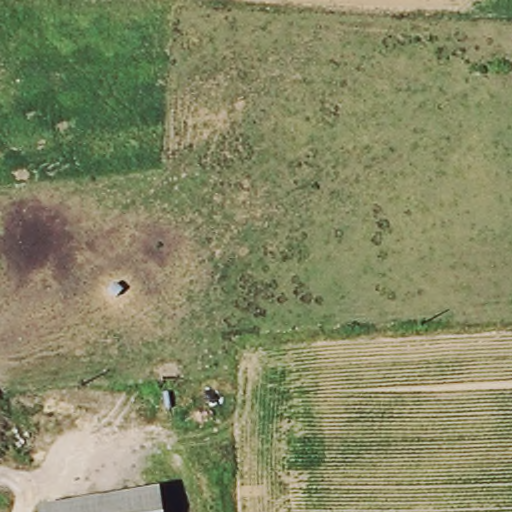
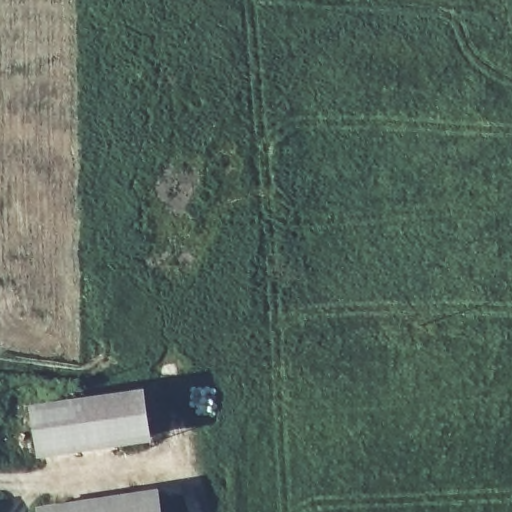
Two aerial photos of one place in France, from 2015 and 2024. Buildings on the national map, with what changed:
new [(31,406),(148,389),(155,443),(40,460),(31,406)]
unchanged [(162,488),(166,512),(41,512),(40,506),(162,488)]

